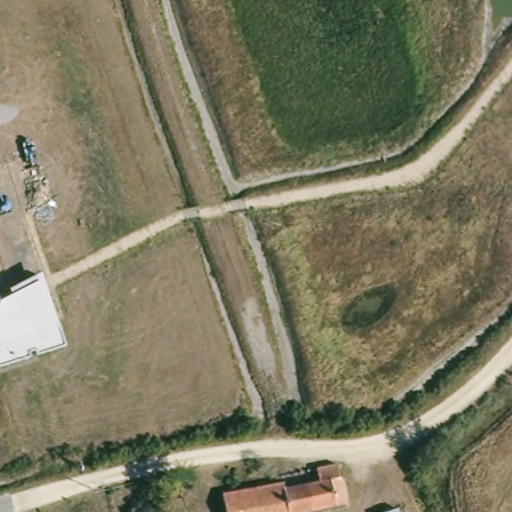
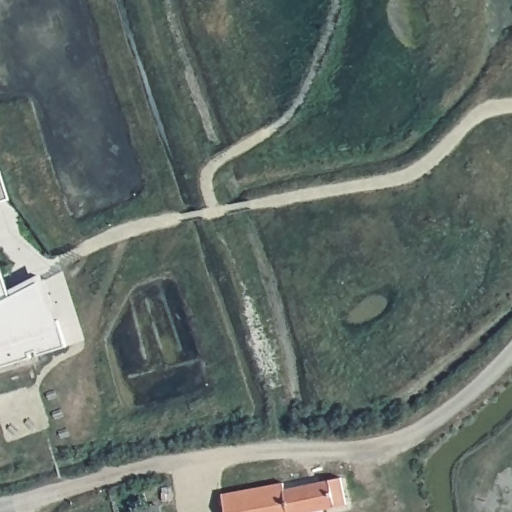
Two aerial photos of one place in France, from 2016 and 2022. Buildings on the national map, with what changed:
unchanged [(54,279),(61,323),(67,321),(76,347),(47,357),(45,351),(39,353),(41,359),(0,371),(0,282),(6,303),(54,279)]
unchanged [(346,478),(350,498),(293,512),(224,512),(220,498),(281,483),(284,493),(320,484),(317,474),(315,467),(332,463),(334,473),(335,481),(346,478)]
unchanged [(401,512),(398,512),(401,511),(401,512)]

